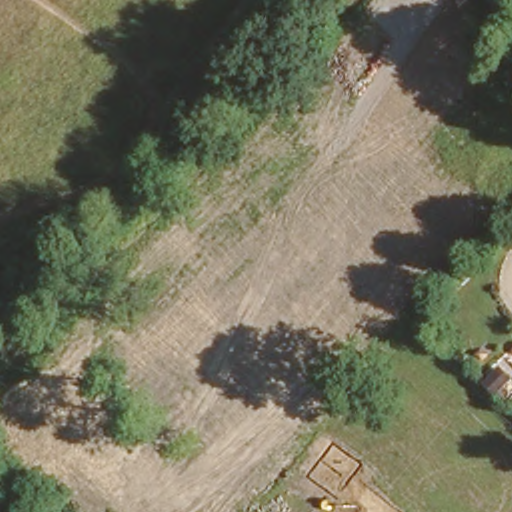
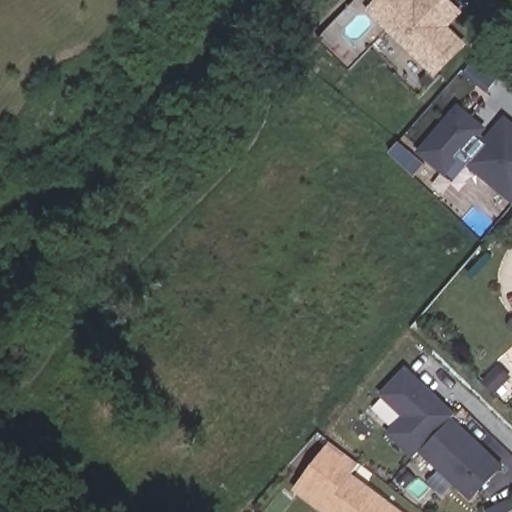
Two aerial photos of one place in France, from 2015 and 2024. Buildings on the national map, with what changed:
new [(376,0),(450,0),(463,12),(449,26),(467,45),(434,78),(366,11),(376,0)]
new [(459,160),(446,176),(418,151),(459,104),(487,129),(482,134),(485,136),(505,115),(512,121),(512,205),(469,167),(459,160)]
new [(379,395),(406,366),(456,414),(453,418),(503,465),(471,500),(419,452),(414,459),(387,433),(401,416),(379,395)]
new [(293,490),(329,440),(358,464),(352,472),(405,512),(322,512),(293,490)]

